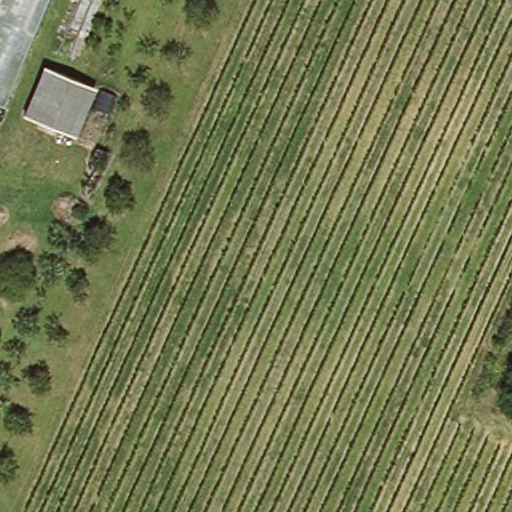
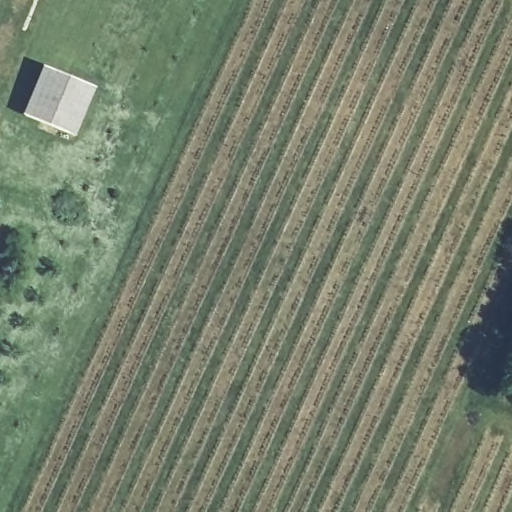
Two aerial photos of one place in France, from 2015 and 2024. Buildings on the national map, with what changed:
demolished [(0,105),(0,0),(48,0),(3,107),(0,105)]
unchanged [(40,65),(94,86),(75,135),(20,114),(40,65)]

